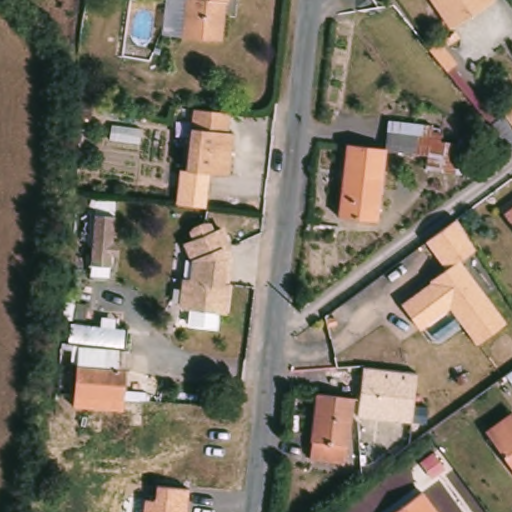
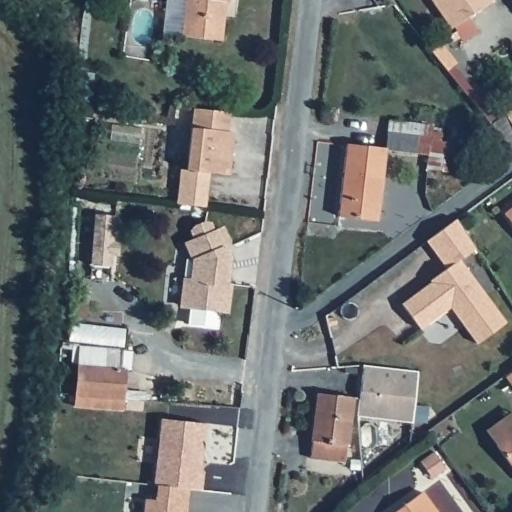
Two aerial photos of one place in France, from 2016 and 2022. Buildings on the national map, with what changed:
unchanged [(227,2),(224,1),(220,42),(180,37),(185,0),(228,0),(227,2)]
unchanged [(492,5),(452,34),(440,16),(429,0),(489,0),(492,5)]
unchanged [(188,170),(192,130),(195,109),(231,112),(229,131),(235,132),(235,135),(230,175),(188,170)]
unchanged [(504,116),(512,110),(512,127),(504,116)]
unchanged [(387,121),(431,126),(430,141),(467,145),(466,154),(472,154),(470,173),(426,169),(427,155),(383,150),(387,121)]
unchanged [(377,220),(339,216),(347,145),(383,150),(377,220)]
unchanged [(503,214),(512,208),(512,226),(503,214)]
unchanged [(120,257),(112,256),(111,270),(91,267),(96,215),(116,217),(115,244),(121,243),(120,257)]
unchanged [(180,280),(187,281),(189,261),(181,244),(191,240),(187,232),(190,227),(197,223),(203,225),(207,232),(216,228),(224,245),(222,246),(227,257),(225,285),(222,311),(177,306),(180,280)]
unchanged [(461,261),(507,325),(477,345),(450,310),(421,330),(403,303),(461,261)]
unchanged [(74,406),(75,396),(78,347),(122,350),(120,369),(128,370),(125,400),(125,411),(74,406)]
unchanged [(358,372),(411,377),(412,368),(425,368),(420,425),(414,423),(413,428),(406,427),(352,421),(358,372)]
new [(512,372),(512,381),(507,375),(512,372)]
unchanged [(347,403),(340,467),(304,463),(312,400),(347,403)]
unchanged [(494,451),(485,437),(512,416),(512,476),(494,451)]
new [(206,423),(200,470),(203,470),(202,489),(189,488),(155,487),(161,419),(206,423)]
unchanged [(143,512),(144,500),(154,501),(155,487),(189,489),(186,512),(143,512)]
unchanged [(395,512),(421,492),(435,512),(395,512)]

